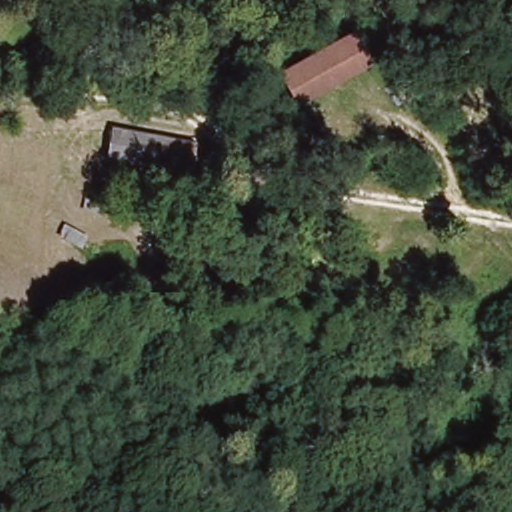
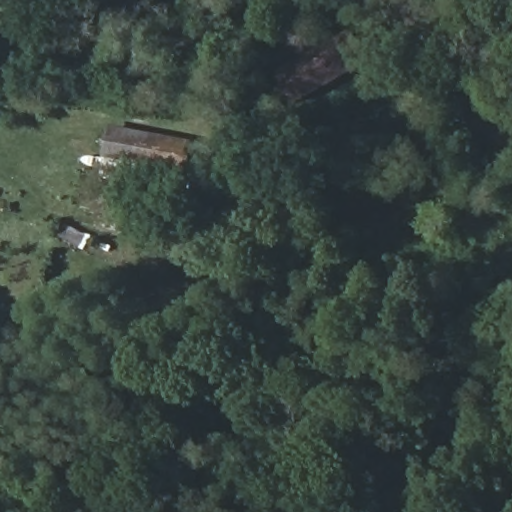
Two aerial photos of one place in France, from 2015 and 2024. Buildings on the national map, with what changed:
unchanged [(293,102),(273,69),(347,29),(368,63),(293,102)]
unchanged [(185,166),(106,156),(109,132),(188,142),(185,166)]

